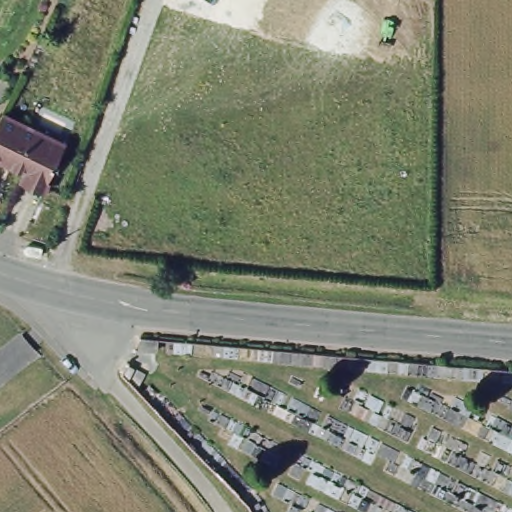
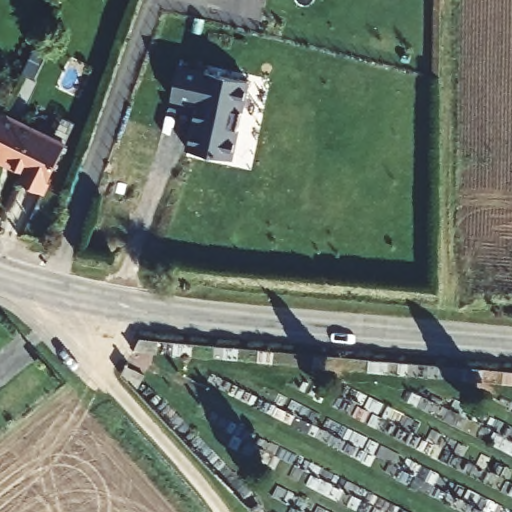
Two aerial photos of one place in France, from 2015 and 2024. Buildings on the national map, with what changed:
new [(195,106),(172,100),(178,65),(250,82),(234,160),(185,150),(195,106)]
unchanged [(3,111),(67,141),(45,189),(23,178),(28,168),(0,155),(0,118),(3,111)]

